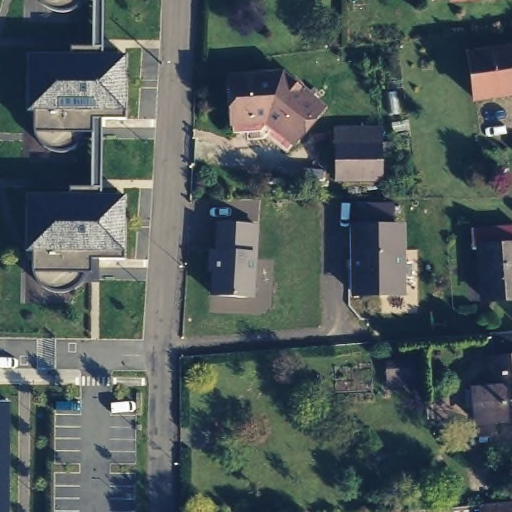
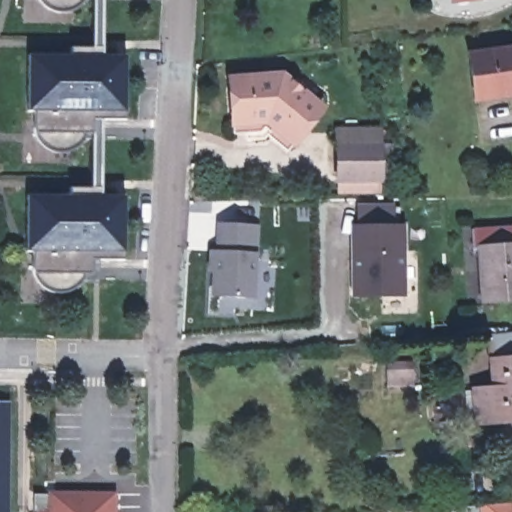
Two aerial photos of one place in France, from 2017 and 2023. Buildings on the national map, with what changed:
unchanged [(68,196),(69,189),(87,188),(90,132),(83,132),(79,142),(70,148),(58,150),(46,148),(35,141),(33,132),(34,110),(27,109),(27,54),(71,54),(70,48),(90,47),(90,0),(104,0),(102,56),(128,56),(126,117),(101,117),(100,196),(127,197),(125,258),(92,258),(91,280),(76,280),(69,286),(59,291),(47,289),(37,282),(35,280),(32,251),(24,251),(26,195),(68,196)]
unchanged [(80,1),(70,9),(60,11),(46,8),(37,0),(36,0),(80,0),(80,1)]
unchanged [(461,0),(481,0),(462,2),(461,0)]
unchanged [(474,55),(512,50),(512,95),(480,100),(474,55)]
unchanged [(262,129),(259,126),(247,127),(229,128),(228,116),(225,73),(277,70),(317,103),(289,138),(282,146),(262,129)]
unchanged [(332,126),(375,126),(375,138),(376,174),(332,174),(332,138),(332,126)]
unchanged [(351,225),(357,224),(357,203),(393,203),(394,223),(405,223),(405,297),(352,296),(351,225)]
unchanged [(208,294),(210,271),(207,271),(208,248),(213,248),(214,224),(257,225),(253,252),(252,296),(208,294)]
unchanged [(482,260),(472,261),(472,239),(512,237),(512,308),(485,310),(482,260)]
unchanged [(474,395),(494,394),(490,340),(512,338),(512,426),(477,428),(475,413),(467,414),(465,396),(474,395)]
unchanged [(388,362),(413,361),(414,383),(388,384),(388,362)]
unchanged [(4,512),(0,512),(0,402),(7,402),(4,512)]
new [(48,496),(48,492),(115,492),(115,512),(35,512),(35,496),(48,496)]
unchanged [(512,507),(512,512),(470,512),(470,511),(512,507)]

